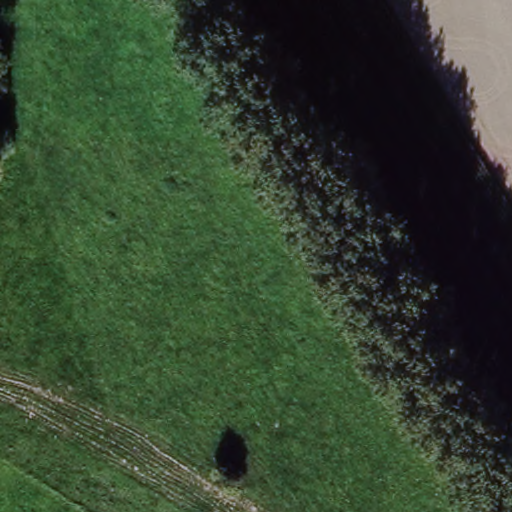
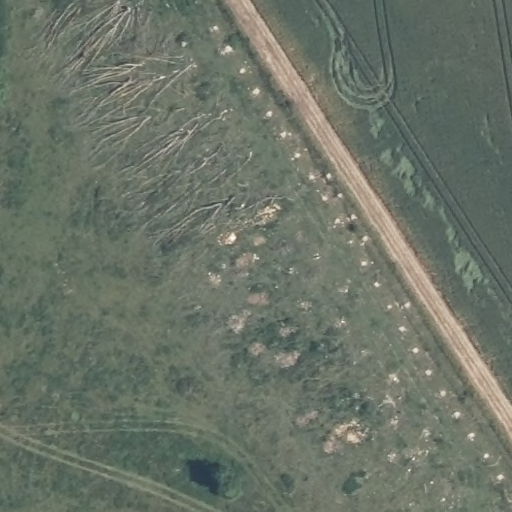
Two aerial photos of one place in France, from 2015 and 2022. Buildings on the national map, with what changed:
[]

